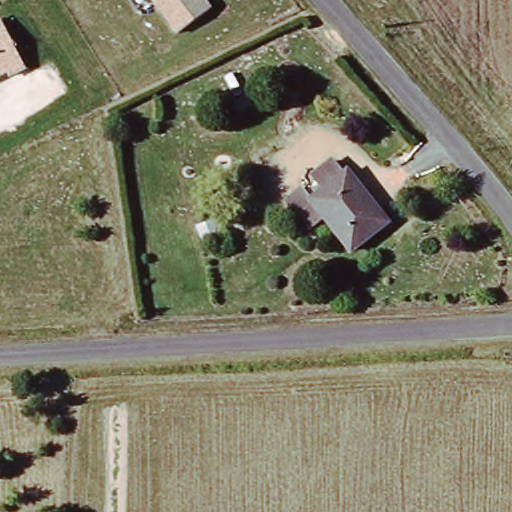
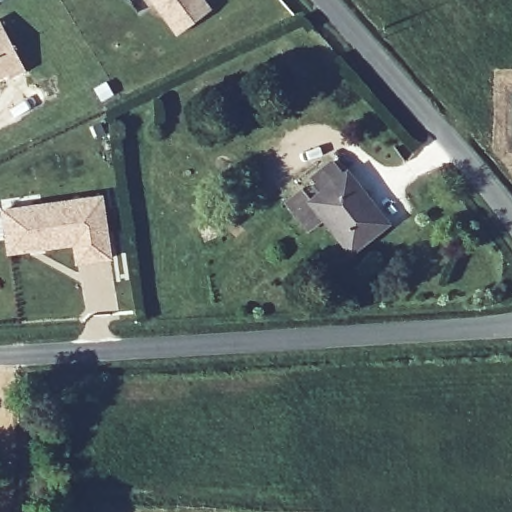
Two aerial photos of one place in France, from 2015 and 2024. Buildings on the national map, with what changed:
unchanged [(181,36),(155,0),(204,0),(213,13),(181,36)]
unchanged [(26,70),(12,77),(10,73),(0,77),(0,21),(2,20),(26,70)]
unchanged [(302,188),(311,200),(323,191),(313,178),(332,164),(341,175),(347,171),(385,221),(350,249),(325,217),(308,229),(285,201),(302,188)]
new [(0,209),(94,198),(101,260),(68,264),(66,245),(35,249),(22,251),(0,253),(0,209)]

